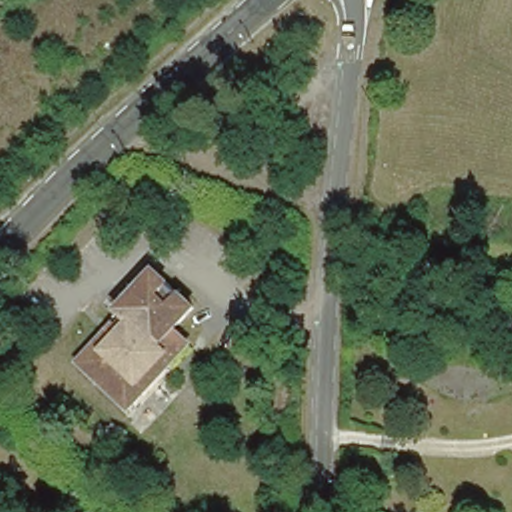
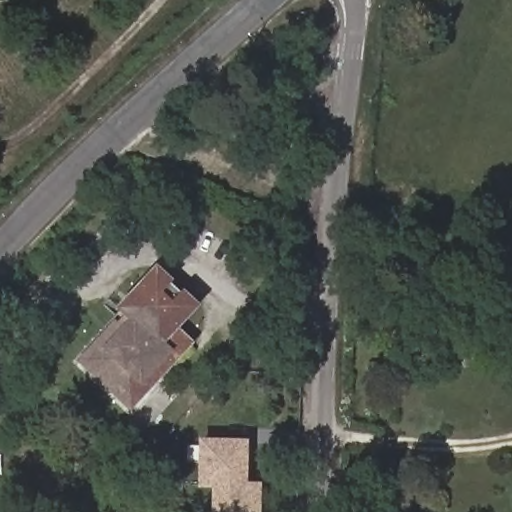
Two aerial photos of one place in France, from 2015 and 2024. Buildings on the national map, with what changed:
unchanged [(110,333),(123,318),(119,315),(155,277),(192,311),(171,335),(186,349),(130,412),(87,373),(80,367),(110,333)]
new [(246,484),(260,483),(260,512),(209,512),(210,490),(196,489),(198,440),(247,441),(246,484)]

